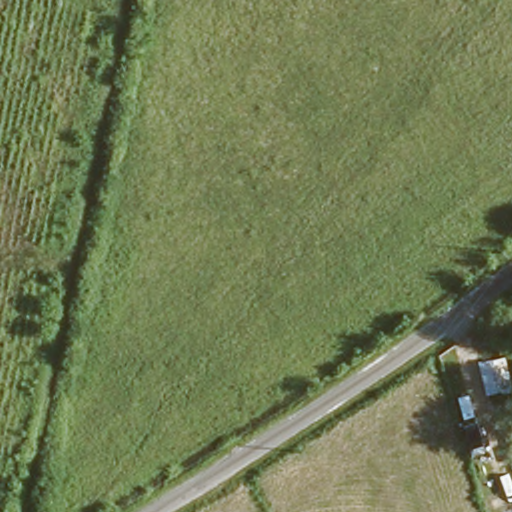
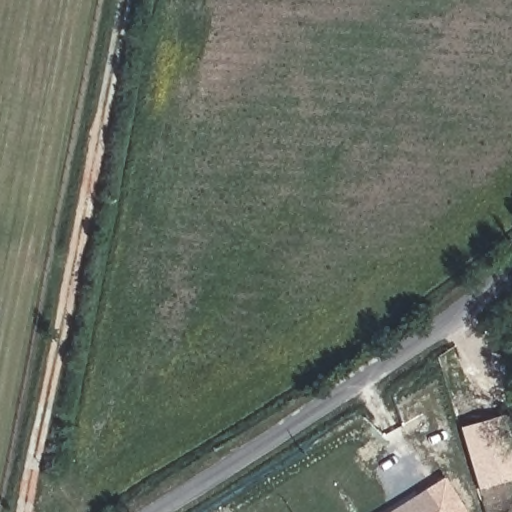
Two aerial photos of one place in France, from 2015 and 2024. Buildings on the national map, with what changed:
new [(502,415),(512,446),(512,478),(479,489),(459,428),(502,415)]
new [(422,495),(446,480),(466,512),(434,512),(422,495)]
new [(422,495),(434,512),(395,512),(422,495)]

